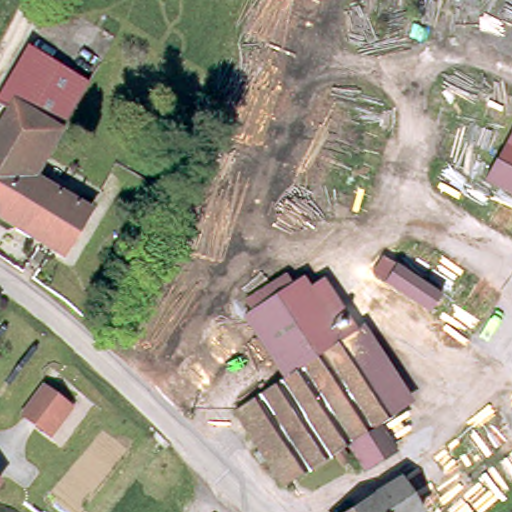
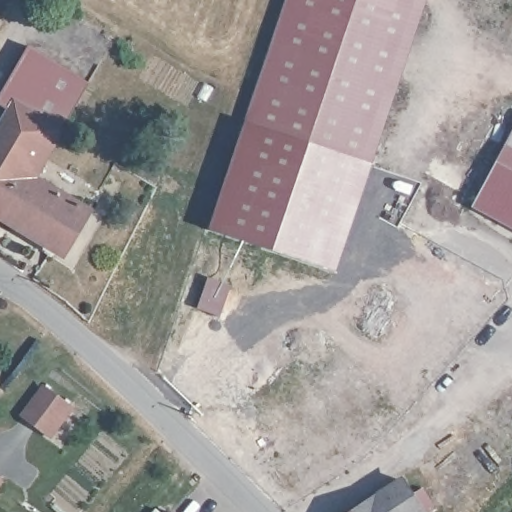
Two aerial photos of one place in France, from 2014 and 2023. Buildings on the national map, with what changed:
new [(336,273),(207,230),(244,123),(285,0),(427,0),(371,166),(336,273)]
unchanged [(0,99),(0,97),(37,43),(38,42),(94,81),(32,176),(21,170),(0,212),(0,127),(12,108),(0,99)]
unchanged [(512,167),(506,164),(497,159),(512,132),(512,167)]
unchanged [(512,167),(512,193),(482,176),(494,157),(512,167)]
unchanged [(21,170),(32,176),(87,212),(59,254),(0,214),(0,212),(21,170)]
new [(512,228),(472,206),(487,179),(512,193),(512,228)]
new [(232,284),(221,318),(197,310),(207,277),(232,284)]
demolished [(344,315),(360,338),(347,347),(332,323),(344,315)]
demolished [(379,432),(349,452),(288,492),(239,417),(288,385),(345,347),(366,380),(377,375),(386,390),(382,392),(389,402),(382,407),(392,423),(379,432)]
unchanged [(41,393),(65,411),(45,438),(20,420),(41,393)]
unchanged [(422,512),(348,512),(402,479),(422,512)]

